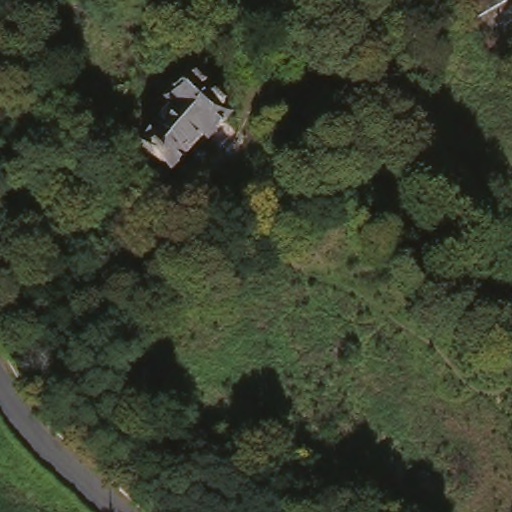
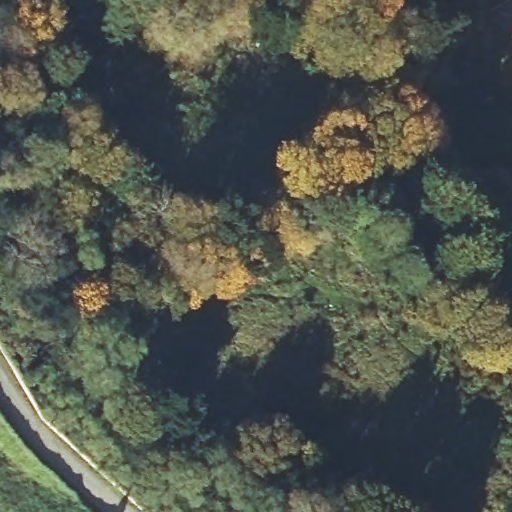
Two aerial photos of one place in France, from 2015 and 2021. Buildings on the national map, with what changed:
unchanged [(508,0),(496,7),(484,14),(482,15),(470,22),(462,2),(461,0),(508,0)]
demolished [(206,142),(201,139),(169,170),(161,161),(159,163),(149,153),(150,151),(142,144),(173,110),(166,104),(186,80),(193,87),(194,85),(204,94),(203,96),(213,105),(214,103),(224,112),(223,114),(228,120),(216,130),(206,142)]
unchanged [(296,151),(283,134),(327,100),(341,116),(296,151)]

